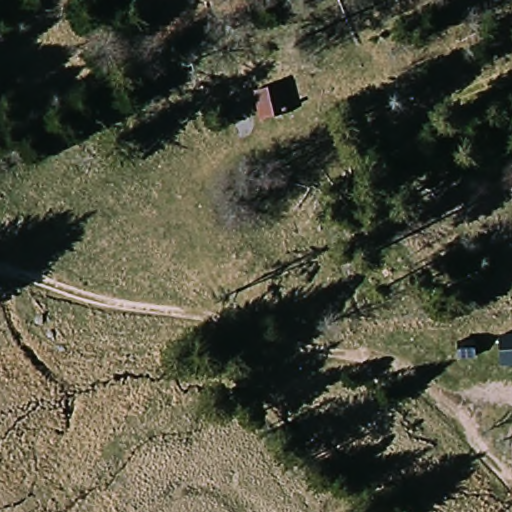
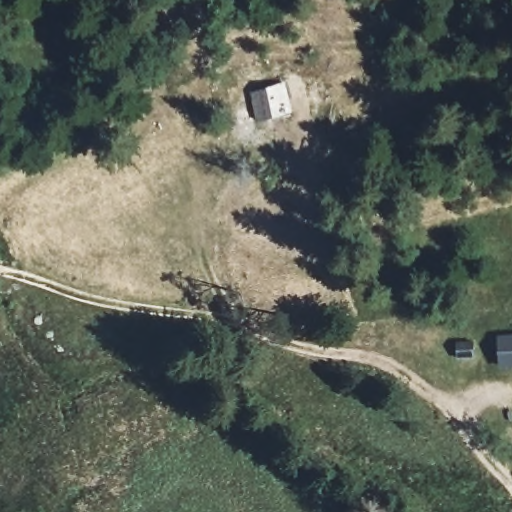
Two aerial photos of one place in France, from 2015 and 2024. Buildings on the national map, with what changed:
unchanged [(257,119),(252,91),(280,85),(284,114),(257,119)]
unchanged [(497,334),(512,333),(512,365),(498,366),(497,334)]

